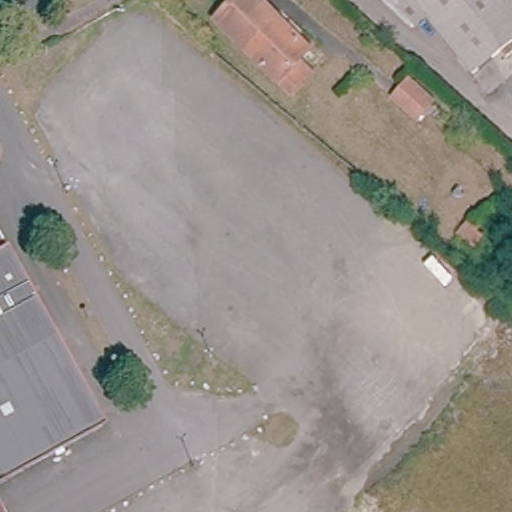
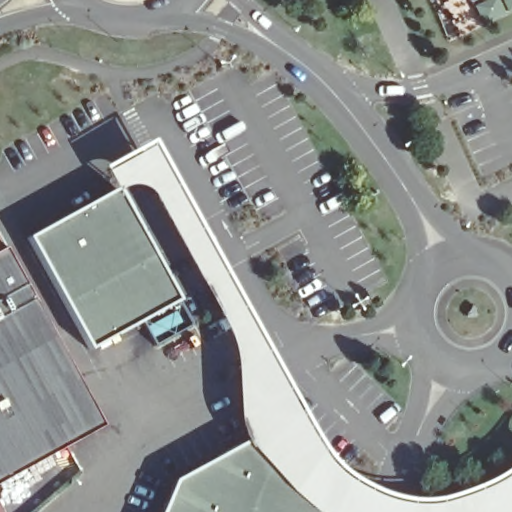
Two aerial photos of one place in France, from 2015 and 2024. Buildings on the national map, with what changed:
demolished [(268,0),(317,46),(310,54),(322,65),(300,89),(224,18),(240,0),(268,0)]
demolished [(485,74),(445,28),(434,14),(420,26),(391,0),(512,0),(512,52),(485,74)]
demolished [(401,99),(407,92),(416,81),(437,99),(429,110),(423,117),(401,99)]
new [(310,511),(293,496),(275,476),(258,460),(246,442),(239,422),(237,388),(232,346),(222,325),(149,192),(142,188),(134,187),(129,187),(119,192),(117,189),(107,172),(151,147),(307,433),(327,462),(343,478),(363,490),(387,500),(410,505),(431,506),(452,502),(477,492),(499,482),(512,473),(512,512),(313,512),(310,511)]
new [(29,239),(117,189),(178,301),(90,348),(29,239)]
demolished [(471,226),(487,238),(477,247),(461,236),(471,226)]
unchanged [(0,232),(9,249),(0,253),(0,232)]
unchanged [(104,426),(0,483),(0,253),(9,249),(104,426)]
new [(175,481),(246,442),(258,460),(275,476),(293,496),(310,511),(313,512),(162,512),(175,481)]
demolished [(373,500),(364,512),(356,505),(367,493),(373,500)]
unchanged [(0,508),(2,512),(0,512),(0,508)]

